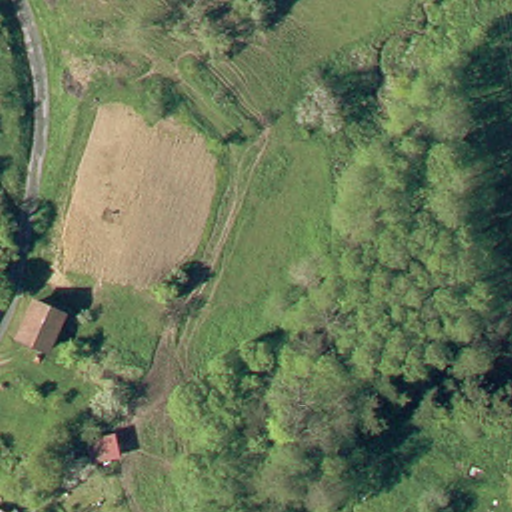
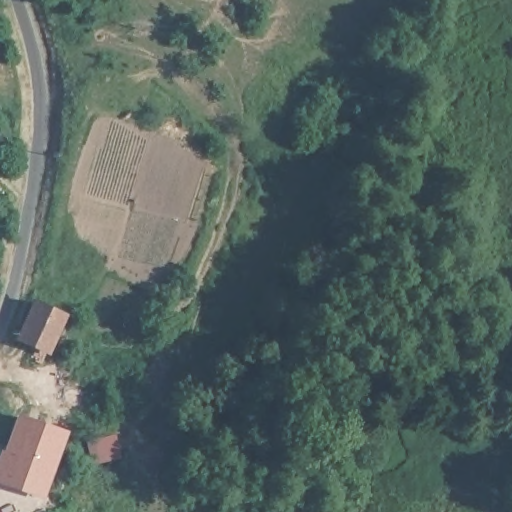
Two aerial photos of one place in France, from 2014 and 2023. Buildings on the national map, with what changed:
unchanged [(18,340),(32,305),(60,315),(45,352),(18,340)]
new [(0,482),(0,469),(19,415),(65,431),(42,496),(0,482)]

